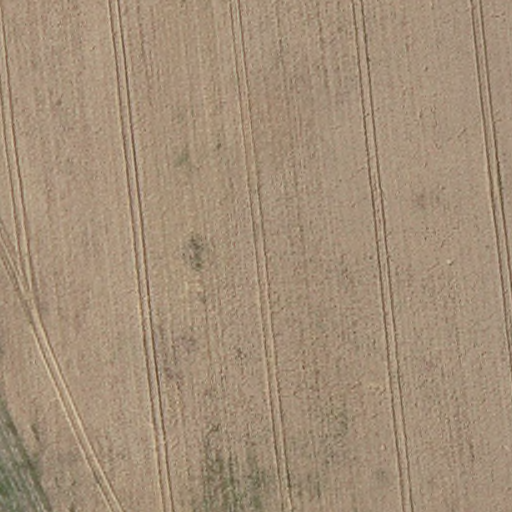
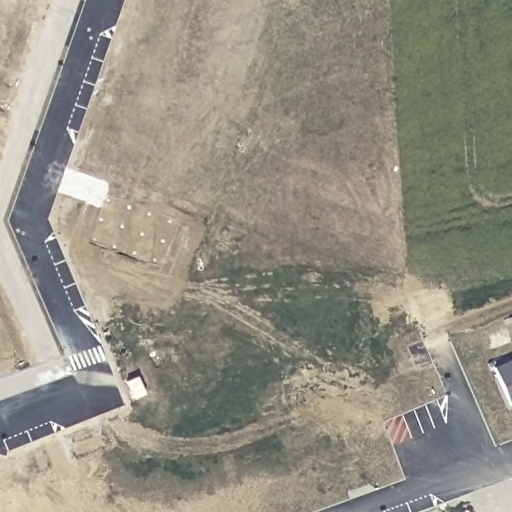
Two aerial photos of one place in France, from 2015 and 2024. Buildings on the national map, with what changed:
new [(492,367),(512,359),(512,406),(509,407),(492,367)]

